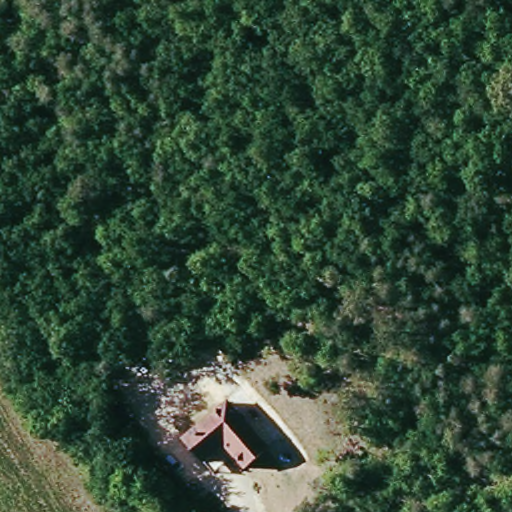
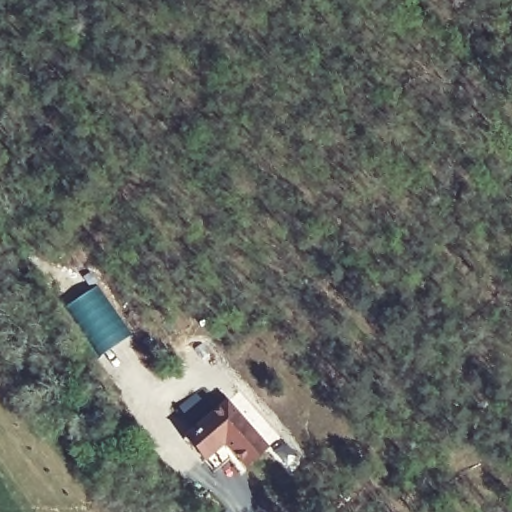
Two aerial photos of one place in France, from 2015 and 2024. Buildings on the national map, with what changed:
new [(104,355),(70,306),(95,288),(130,338),(115,348),(104,355)]
unchanged [(197,453),(185,423),(237,401),(262,457),(234,467),(230,456),(203,467),(197,453)]

